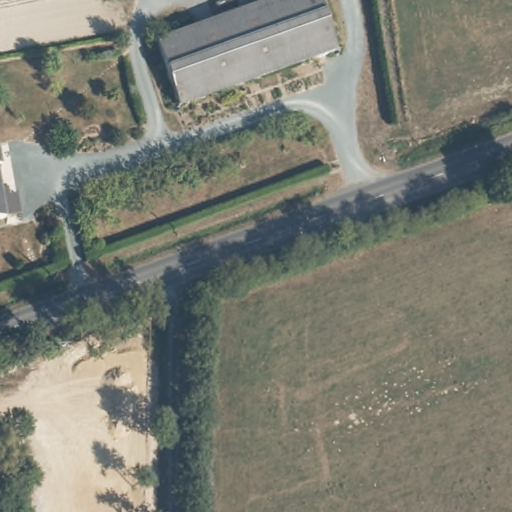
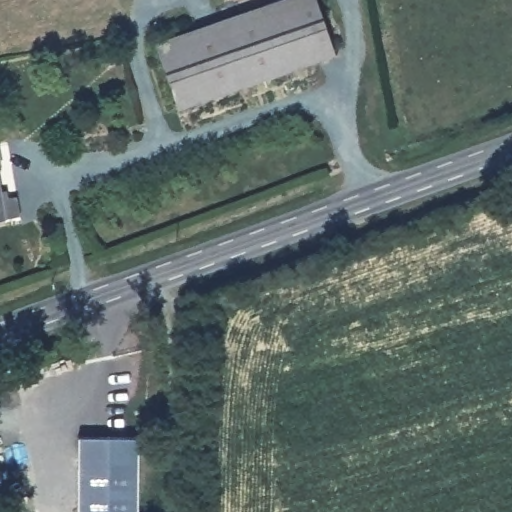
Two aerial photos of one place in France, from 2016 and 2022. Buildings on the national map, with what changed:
unchanged [(266,0),(314,0),(333,54),(175,111),(151,39),(266,0)]
unchanged [(9,192),(22,191),(26,214),(0,218),(0,145),(3,144),(9,192)]
new [(137,435),(138,512),(75,512),(75,435),(137,435)]

